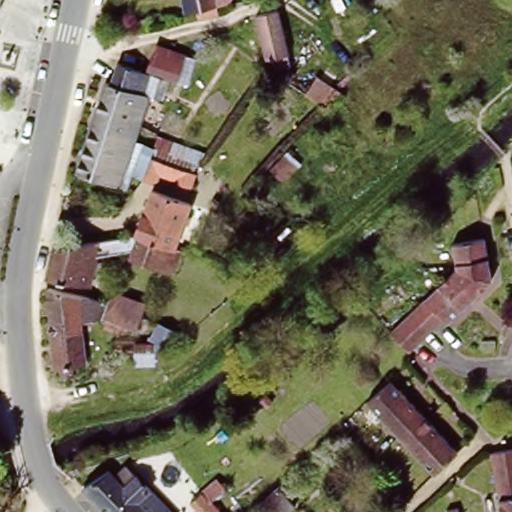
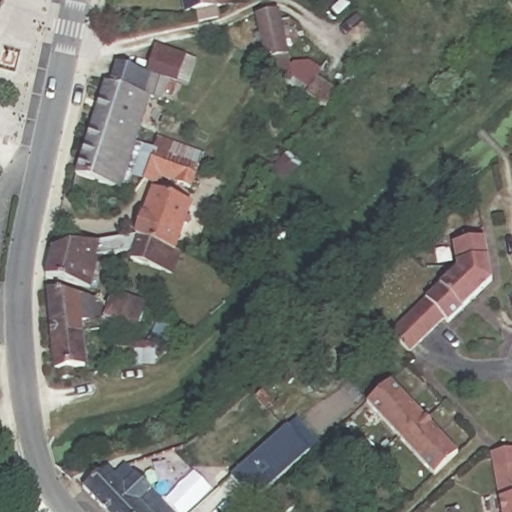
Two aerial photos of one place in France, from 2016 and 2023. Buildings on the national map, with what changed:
unchanged [(223,5),(225,13),(210,16),(202,13),(194,14),(190,0),(240,0),(223,5)]
unchanged [(261,6),(280,55),(265,61),(260,51),(254,54),(237,15),(261,6)]
unchanged [(142,71),(151,48),(187,56),(173,89),(141,81),(145,73),(142,71)]
unchanged [(105,81),(112,84),(121,64),(142,71),(145,73),(141,81),(137,93),(146,96),(130,141),(118,178),(115,187),(72,171),(105,81)]
unchanged [(333,93),(319,108),(265,70),(282,65),(289,71),(286,75),(300,84),(307,75),(333,93)]
unchanged [(152,147),(155,137),(189,147),(185,154),(195,159),(188,180),(182,178),(178,184),(159,176),(154,189),(118,178),(130,141),(152,147)]
unchanged [(178,204),(159,251),(120,234),(139,190),(178,204)]
unchanged [(120,234),(159,251),(164,253),(155,274),(110,257),(113,248),(86,257),(78,287),(35,274),(43,244),(120,234)]
unchanged [(458,272),(455,246),(487,242),(491,285),(447,325),(442,321),(407,353),(390,332),(458,272)]
unchanged [(94,300),(89,313),(67,315),(78,358),(65,361),(67,369),(57,372),(55,364),(49,365),(37,285),(94,300)]
unchanged [(109,308),(120,294),(145,304),(142,321),(137,334),(87,325),(89,313),(94,300),(109,308)]
unchanged [(142,321),(174,334),(173,351),(167,359),(151,368),(112,372),(114,343),(137,348),(137,334),(142,321)]
unchanged [(457,452),(433,472),(370,401),(395,379),(457,452)]
new [(285,431),(295,423),(317,447),(307,456),(254,502),(232,477),(285,431)]
unchanged [(93,489),(114,473),(120,479),(132,467),(145,479),(174,512),(115,512),(93,489)]
unchanged [(497,476),(509,474),(512,474),(512,512),(502,512),(497,476)]
unchanged [(221,483),(230,494),(218,507),(223,512),(202,512),(197,507),(221,483)]
unchanged [(284,484),(301,502),(290,512),(274,512),(264,502),(284,484)]

